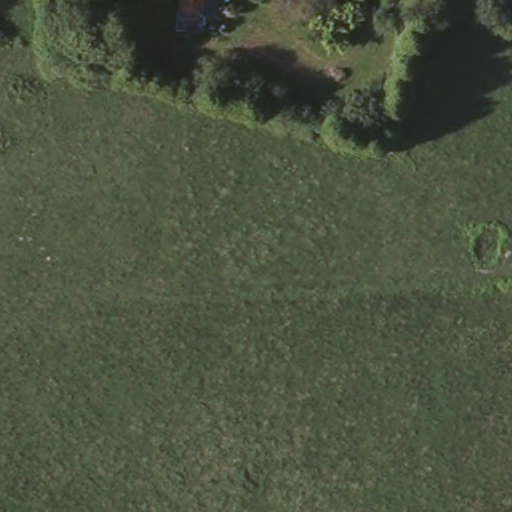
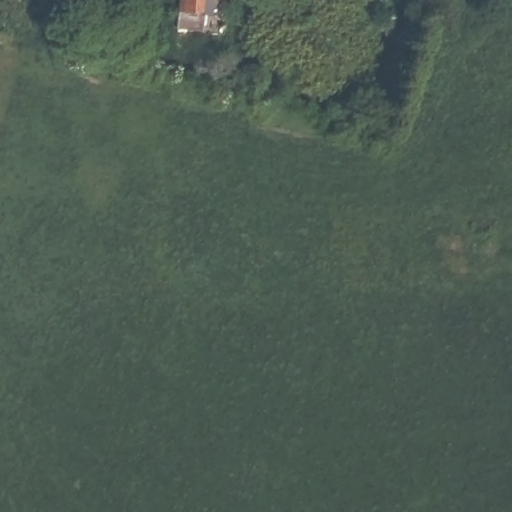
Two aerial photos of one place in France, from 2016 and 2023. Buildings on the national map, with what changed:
unchanged [(181,10),(182,0),(202,0),(201,13),(204,15),(201,31),(176,27),(177,10),(181,10)]

